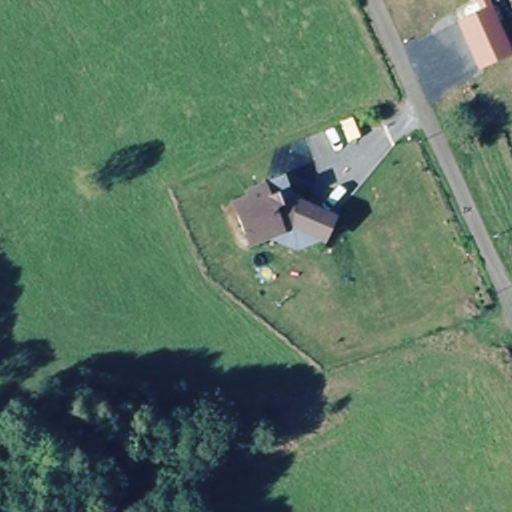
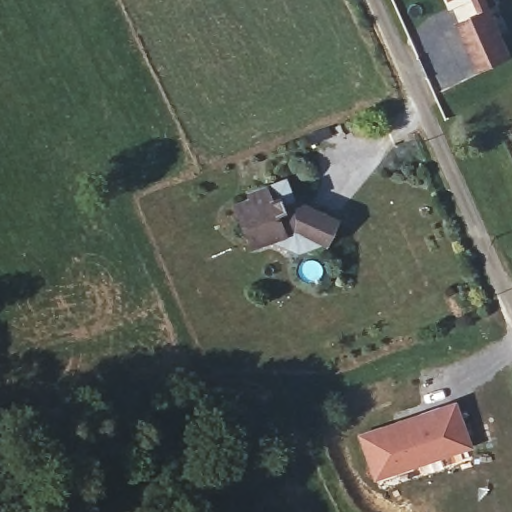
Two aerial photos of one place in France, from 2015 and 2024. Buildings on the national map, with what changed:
unchanged [(512,51),(512,55),(479,70),(458,21),(480,10),(475,0),(490,0),(512,51)]
unchanged [(269,236),(249,242),(235,202),(250,196),(249,190),(265,184),(285,176),(294,199),(336,218),(324,242),(316,239),(295,252),(269,236)]
new [(471,445),(372,482),(355,433),(454,398),(471,445)]

